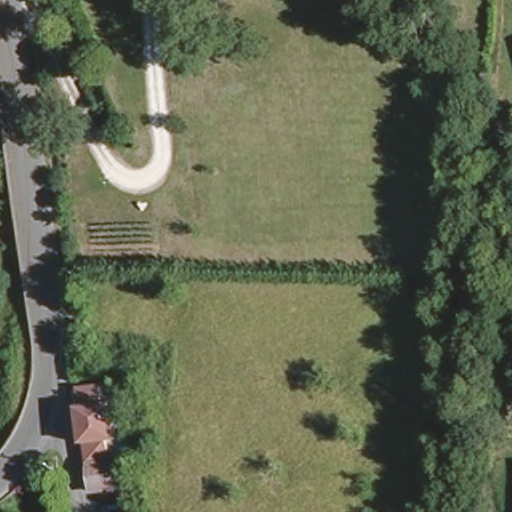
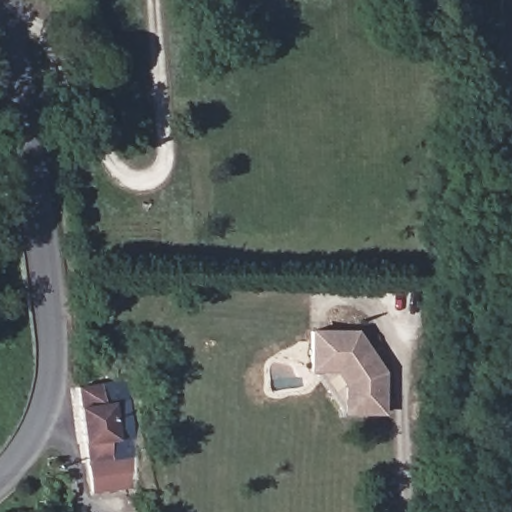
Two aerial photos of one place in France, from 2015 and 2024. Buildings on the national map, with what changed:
new [(335,372),(310,371),(310,328),(358,328),(387,371),(386,415),(343,414),(344,383),(335,372)]
unchanged [(82,413),(78,413),(76,389),(117,385),(127,489),(89,492),(82,413)]

